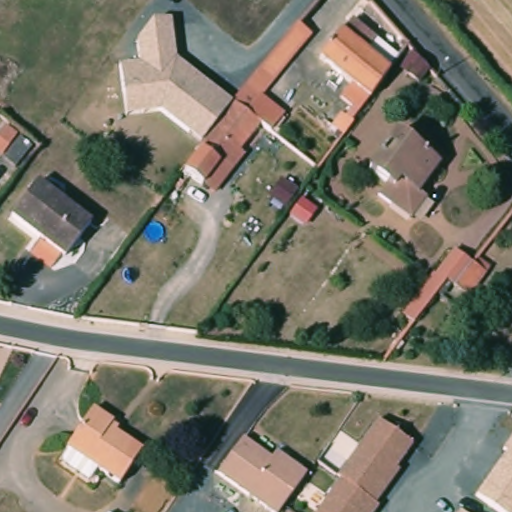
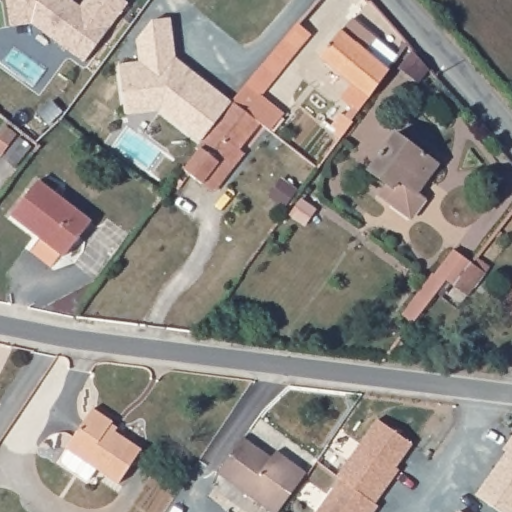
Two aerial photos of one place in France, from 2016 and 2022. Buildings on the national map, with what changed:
new [(11,27),(6,0),(72,0),(80,5),(84,0),(126,0),(129,2),(83,63),(33,23),(11,27)]
unchanged [(210,135),(202,145),(161,109),(123,114),(117,61),(138,59),(136,39),(150,19),(171,17),(175,57),(235,103),(210,135)]
unchanged [(366,109),(365,107),(355,120),(338,106),(348,94),(311,64),(343,27),(397,70),(366,109)]
unchanged [(288,37),(299,46),(259,95),(282,114),(269,130),(260,122),(236,104),(235,103),(286,39),(288,37)]
unchanged [(427,66),(420,72),(415,67),(422,61),(427,66)]
unchanged [(214,190),(203,182),(185,167),(210,135),(235,103),(236,104),(260,122),(239,149),(244,152),(214,190)]
unchanged [(329,129),(340,115),(353,125),(343,139),(329,129)]
unchanged [(412,225),(380,202),(389,190),(365,172),(392,136),(434,167),(413,195),(426,205),(412,225)]
unchanged [(36,179),(90,217),(66,253),(11,214),(36,179)]
unchanged [(465,295),(455,287),(447,280),(428,305),(420,299),(416,295),(428,280),(434,272),(436,273),(455,249),(474,263),(475,264),(486,274),(474,289),(468,296),(465,295)]
unchanged [(507,293),(507,289),(508,287),(510,286),(512,286),(512,308),(511,307),(510,309),(500,301),(507,293)]
unchanged [(65,463),(63,458),(69,448),(68,447),(91,408),(111,420),(107,426),(143,448),(124,481),(96,465),(88,477),(65,463)]
unchanged [(415,443),(378,500),(382,503),(375,512),(318,512),(343,479),(339,475),(380,421),(415,443)]
unchanged [(278,512),(276,512),(217,472),(243,435),(271,454),(275,449),(306,470),(278,512)]
unchanged [(477,496),(509,450),(506,447),(512,439),(512,512),(501,512),(477,496)]
unchanged [(463,512),(462,512),(462,511),(463,512)]

